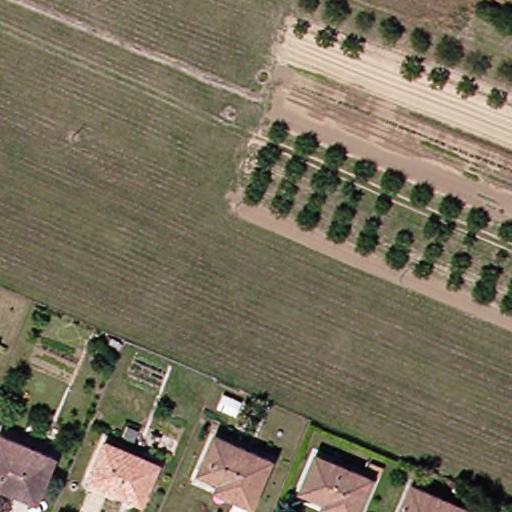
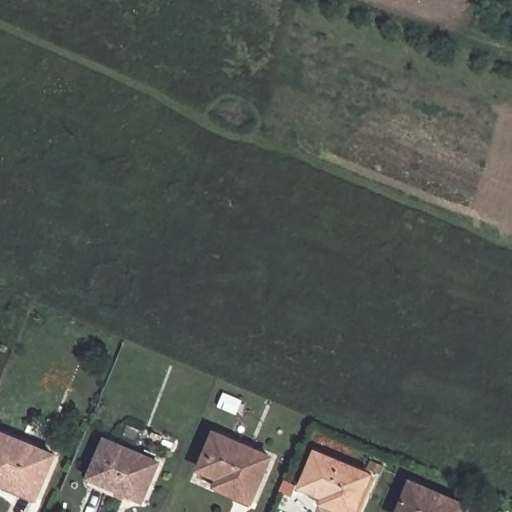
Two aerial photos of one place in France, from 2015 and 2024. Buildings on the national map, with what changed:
unchanged [(0,485),(0,435),(0,433),(55,457),(36,500),(0,485)]
unchanged [(253,503),(216,488),(219,480),(199,471),(215,434),(273,460),(253,503)]
unchanged [(160,465),(143,503),(108,488),(89,480),(106,441),(160,465)]
unchanged [(357,512),(339,512),(337,511),(324,506),(325,500),(302,490),(316,455),(371,478),(357,512)]
unchanged [(474,507),(471,512),(405,512),(417,483),(474,507)]

